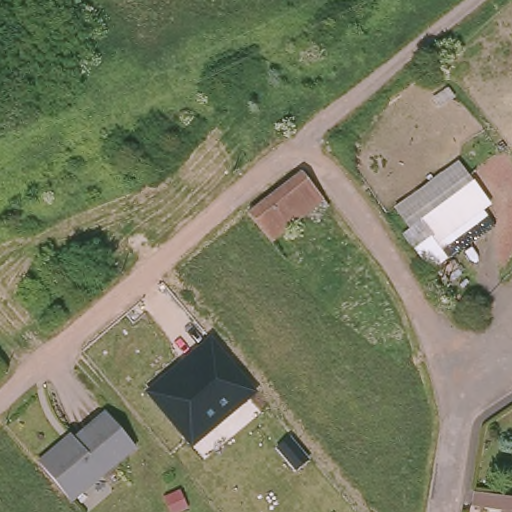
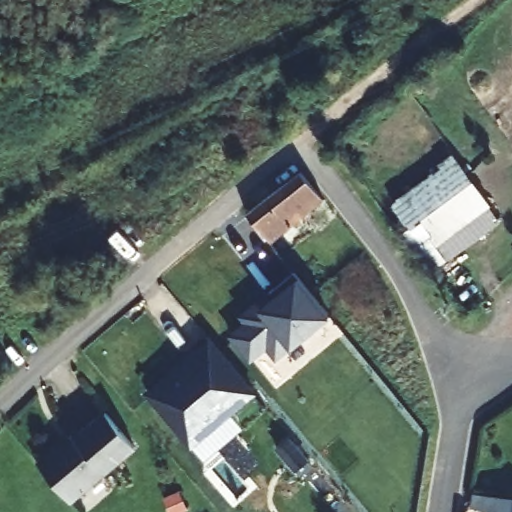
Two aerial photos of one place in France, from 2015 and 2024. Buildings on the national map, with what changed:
unchanged [(492,205),(482,212),(492,227),(447,260),(429,272),(401,234),(408,229),(394,207),(457,161),(492,205)]
unchanged [(247,214),(252,209),(299,170),(320,199),(272,235),(267,240),(247,214)]
new [(276,360),(267,347),(251,360),(232,336),(250,303),(268,288),(274,295),(304,270),(337,311),(292,348),(276,360)]
unchanged [(145,392),(210,337),(257,393),(191,448),(145,392)]
unchanged [(56,445),(67,446),(73,441),(72,439),(104,412),(133,447),(69,500),(36,461),(56,445)]
unchanged [(512,507),(512,512),(485,512),(487,503),(512,507)]

